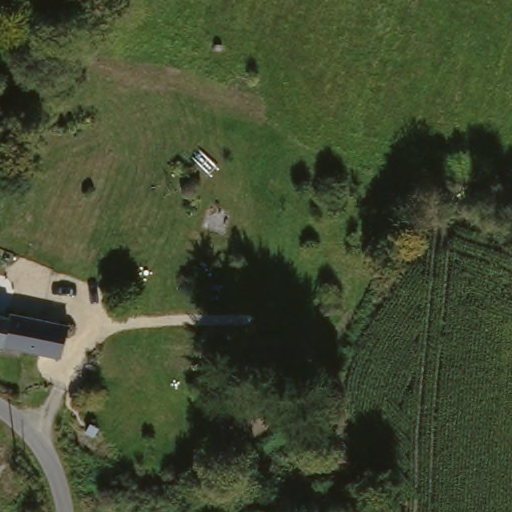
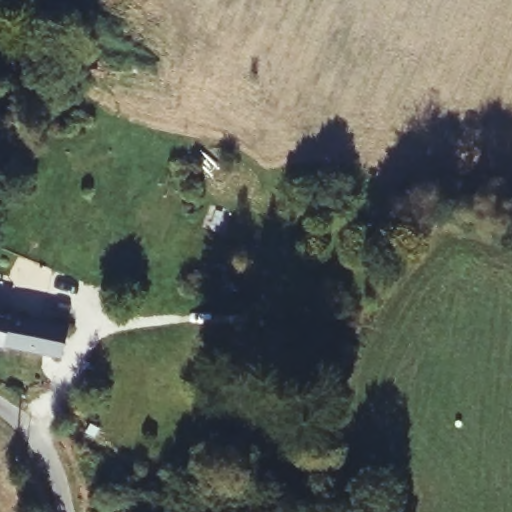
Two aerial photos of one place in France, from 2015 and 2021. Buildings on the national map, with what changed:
unchanged [(10,306),(65,315),(61,354),(0,342),(0,310),(11,311),(10,306)]
unchanged [(282,352),(275,370),(249,363),(254,346),(282,352)]

